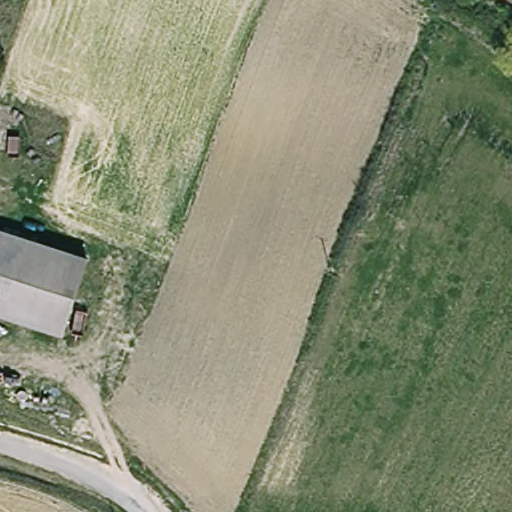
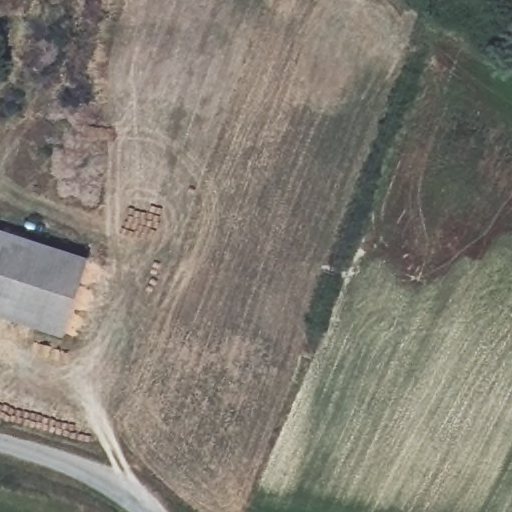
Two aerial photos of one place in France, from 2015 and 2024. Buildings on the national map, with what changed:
unchanged [(73,259),(48,334),(0,318),(0,234),(73,259)]

